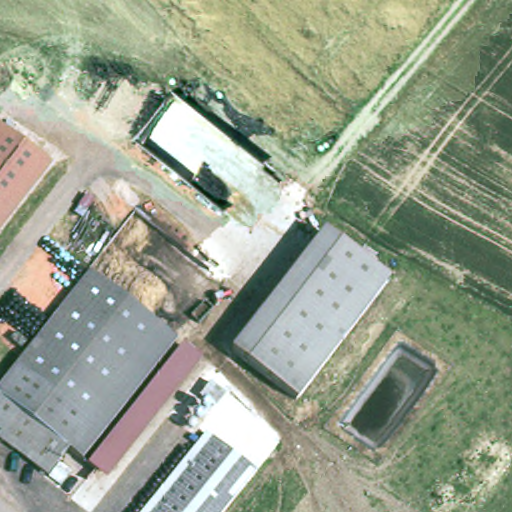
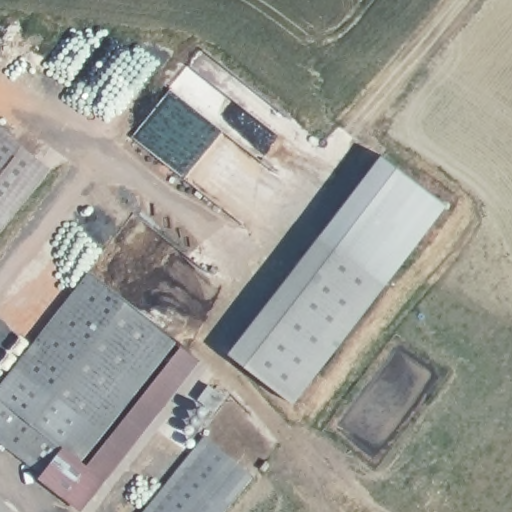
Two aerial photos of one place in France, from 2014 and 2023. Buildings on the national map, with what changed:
unchanged [(0,231),(0,127),(50,167),(0,231)]
new [(330,235),(388,159),(449,205),(390,284),(330,235)]
unchanged [(390,284),(295,400),(235,351),(330,235),(390,284)]
unchanged [(4,435),(0,432),(0,390),(92,273),(179,343),(81,467),(65,454),(20,418),(4,435)]
unchanged [(202,360),(105,483),(81,467),(175,348),(179,343),(202,360)]
unchanged [(0,444),(0,439),(4,435),(20,418),(65,454),(43,480),(0,444)]
unchanged [(223,512),(141,512),(203,433),(255,472),(223,512)]

